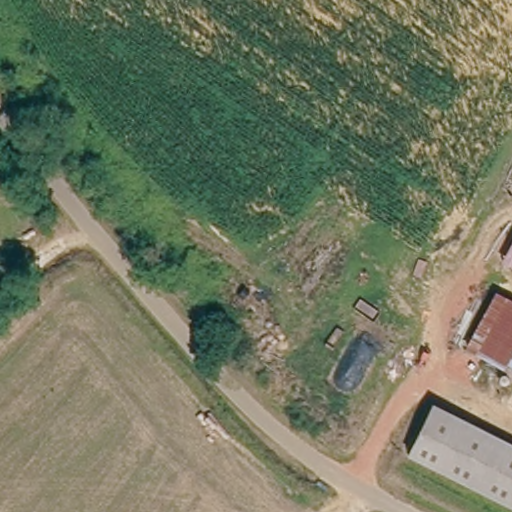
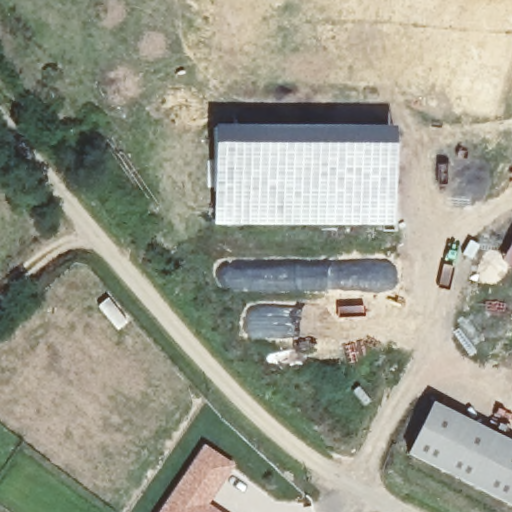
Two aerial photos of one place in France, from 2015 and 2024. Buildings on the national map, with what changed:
new [(393,226),(215,226),(215,128),(395,128),(393,226)]
unchanged [(512,240),(512,265),(501,259),(512,240)]
unchanged [(512,512),(509,512),(409,462),(434,412),(512,452),(512,512)]
new [(208,505),(218,512),(159,512),(203,445),(234,467),(208,505)]

